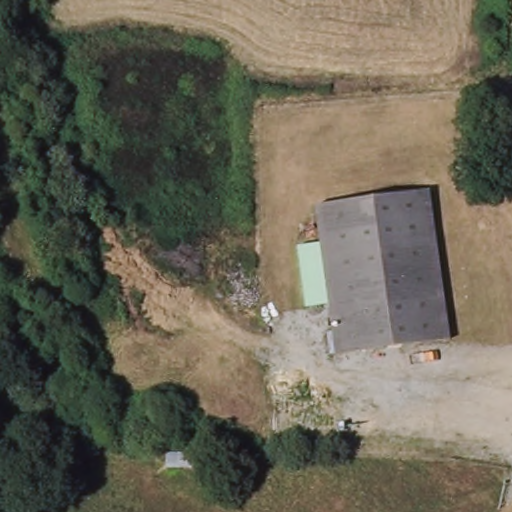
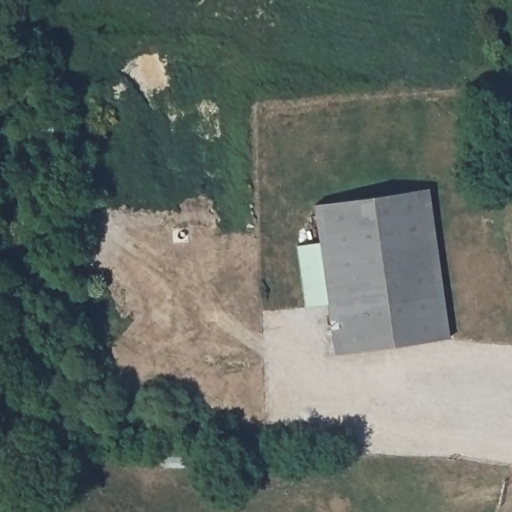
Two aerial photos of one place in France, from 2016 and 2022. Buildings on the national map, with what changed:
unchanged [(459,337),(345,358),(318,213),(431,190),(459,337)]

